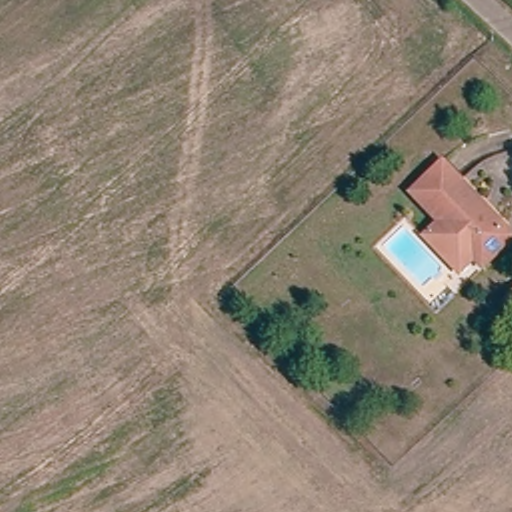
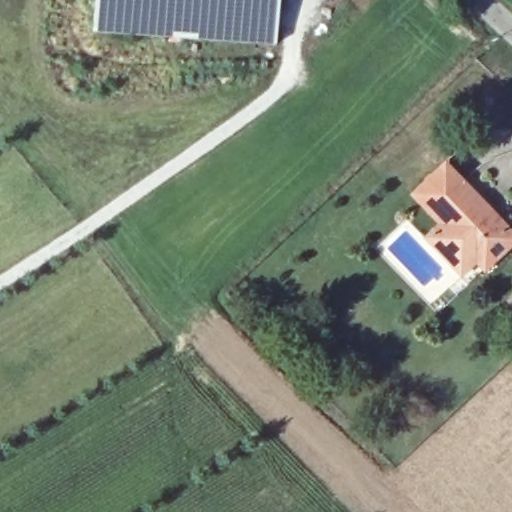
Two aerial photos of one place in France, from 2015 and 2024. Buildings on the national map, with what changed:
new [(91,0),(123,0),(120,26),(89,23),(91,0)]
new [(123,0),(276,0),(273,40),(120,26),(123,0)]
unchanged [(512,231),(512,242),(485,268),(476,259),(462,274),(426,239),(441,224),(412,196),(446,163),(512,231)]
unchanged [(504,305),(512,297),(512,312),(504,305)]

